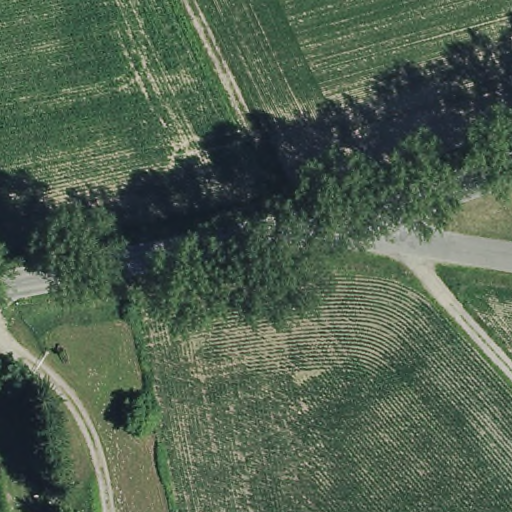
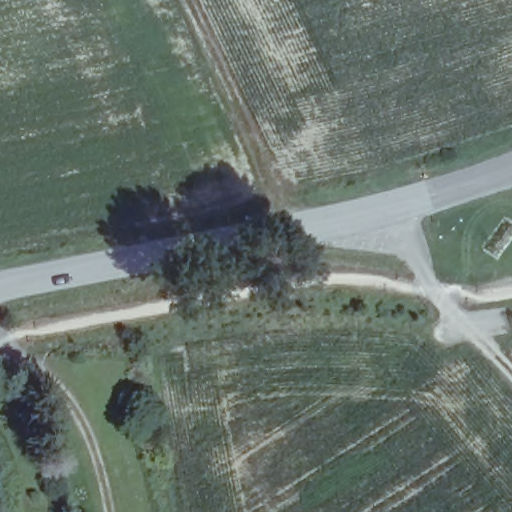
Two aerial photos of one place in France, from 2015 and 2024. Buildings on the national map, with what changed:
[]

